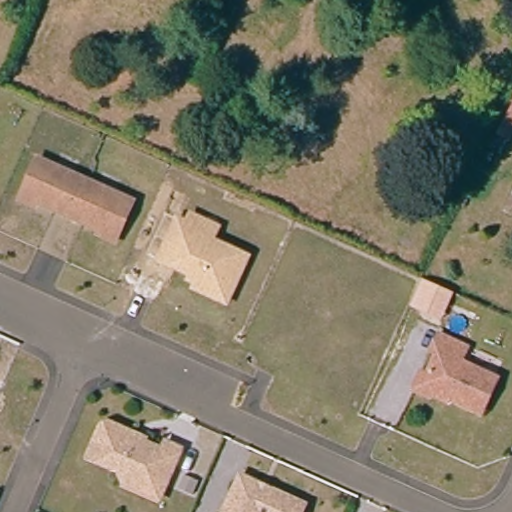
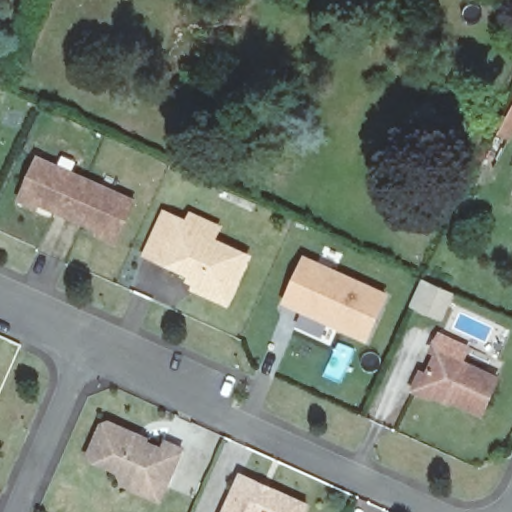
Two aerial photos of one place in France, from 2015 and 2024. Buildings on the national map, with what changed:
unchanged [(512,100),(512,142),(495,132),(512,100)]
unchanged [(70,220),(39,206),(37,210),(21,202),(39,161),(87,183),(70,220)]
unchanged [(135,204),(117,245),(100,237),(102,234),(70,220),(87,183),(135,204)]
unchanged [(190,291),(192,285),(186,281),(187,276),(153,260),(175,214),(186,218),(190,210),(222,224),(217,239),(253,255),(227,306),(190,291)]
new [(305,259),(386,295),(366,339),(286,303),(305,259)]
unchanged [(445,316),(432,310),(430,316),(412,308),(423,283),(441,291),(453,297),(445,316)]
unchanged [(417,389),(423,377),(430,380),(442,354),(436,351),(442,336),(470,348),(463,363),(500,380),(484,413),(433,390),(431,396),(417,389)]
unchanged [(146,490),(121,479),(117,472),(87,458),(101,426),(107,424),(136,436),(134,439),(161,451),(165,442),(181,449),(165,486),(161,497),(146,490)]
unchanged [(229,512),(245,477),(309,506),(306,512),(229,512)]

